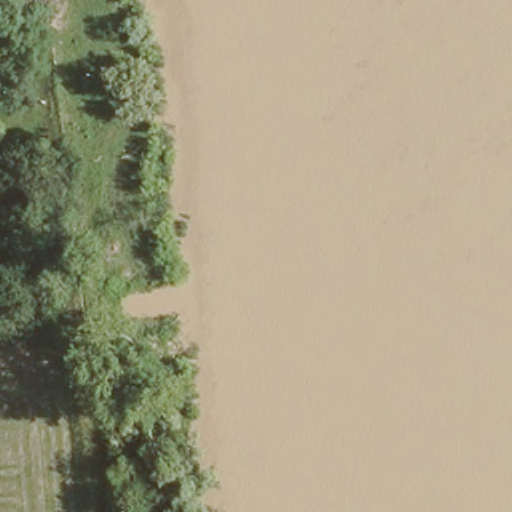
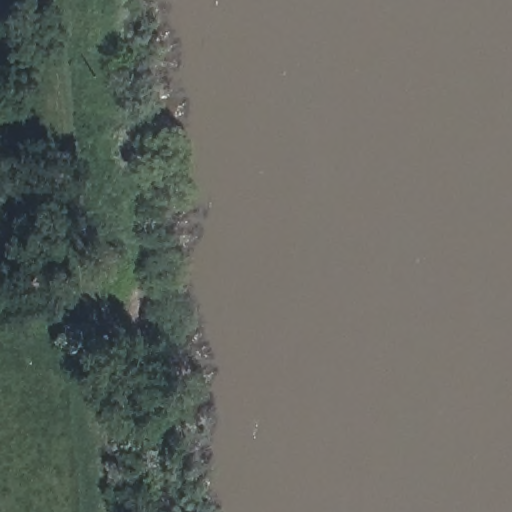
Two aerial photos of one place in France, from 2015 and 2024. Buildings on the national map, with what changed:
[]

